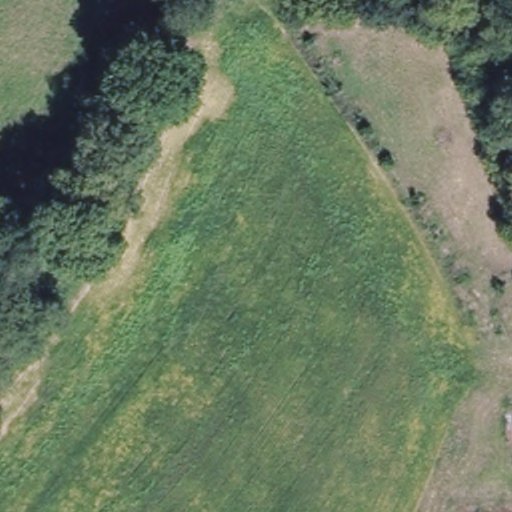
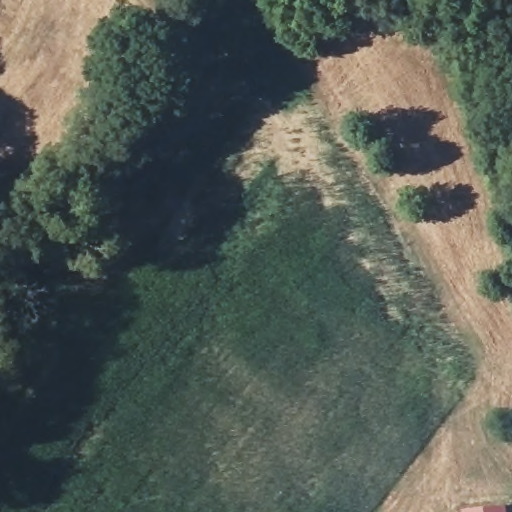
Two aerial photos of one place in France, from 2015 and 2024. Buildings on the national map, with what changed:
new [(507,512),(462,512),(462,509),(506,504),(507,512)]

